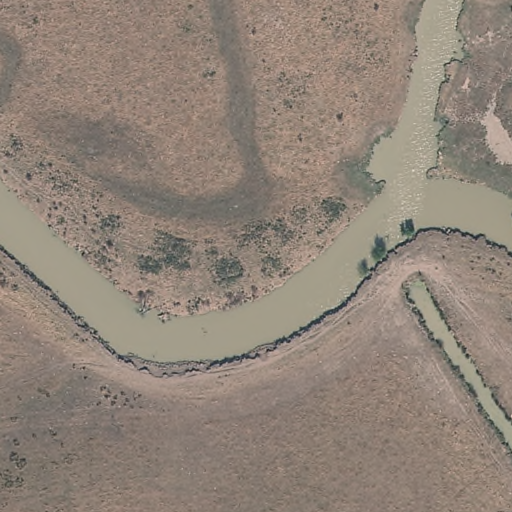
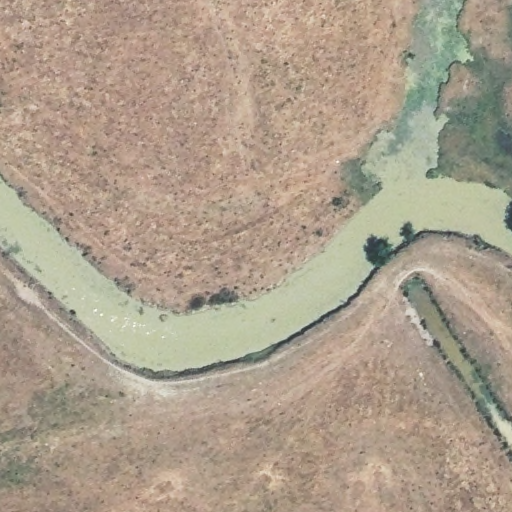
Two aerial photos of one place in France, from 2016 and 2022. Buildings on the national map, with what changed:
[]

